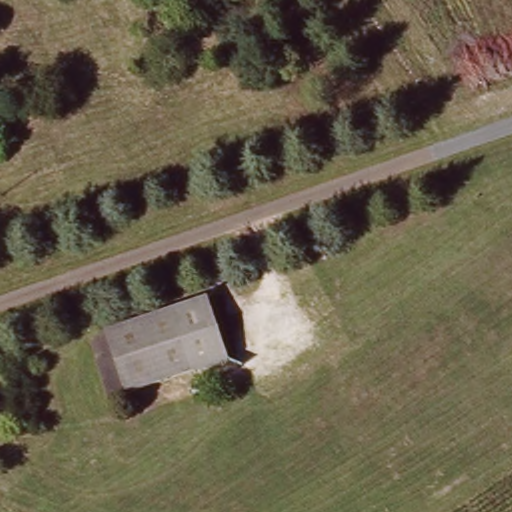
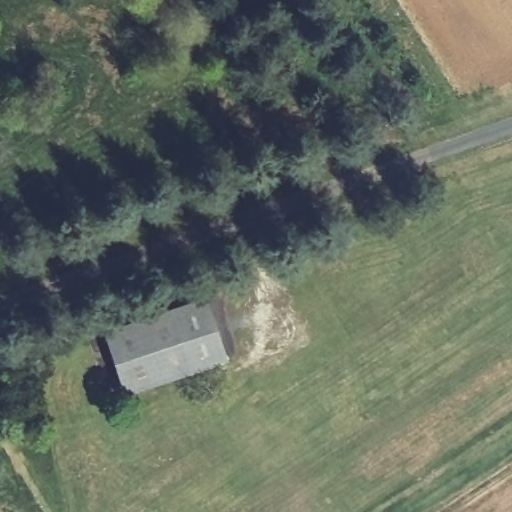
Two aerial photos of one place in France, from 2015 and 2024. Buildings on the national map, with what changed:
unchanged [(233,355),(130,395),(113,330),(211,297),(233,355)]

